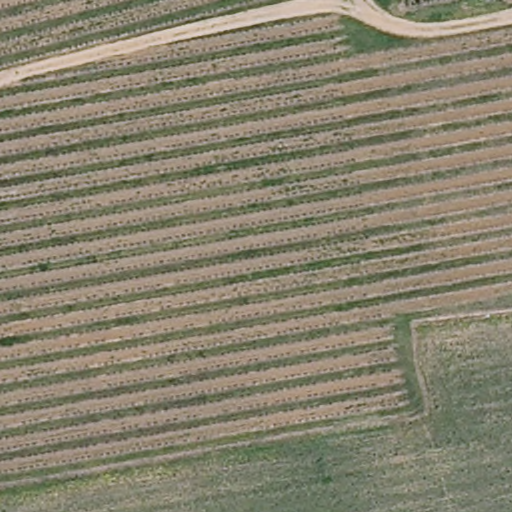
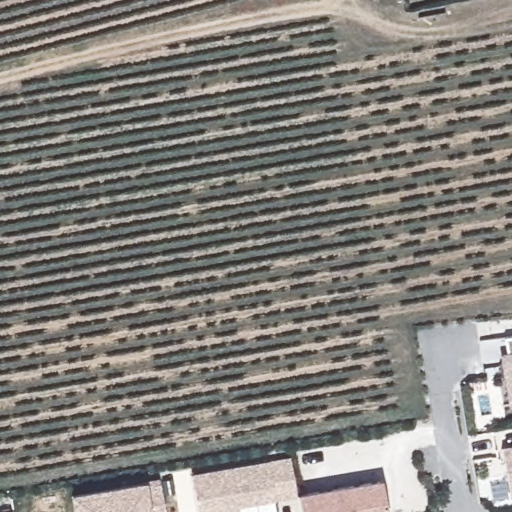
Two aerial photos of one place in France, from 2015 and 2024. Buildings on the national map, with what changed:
new [(504,380),(500,380),(498,367),(503,366),(508,366),(505,340),(512,340),(512,405),(507,405),(506,391),(504,380)]
new [(501,448),(512,447),(512,493),(509,493),(501,448)]
new [(290,456),(296,495),(273,499),(276,512),(200,512),(193,474),(290,456)]
new [(159,479),(165,512),(75,512),(72,494),(159,479)]
new [(388,512),(300,512),(296,495),(382,480),(388,512)]
new [(13,512),(0,512),(0,511),(12,509),(13,512)]

